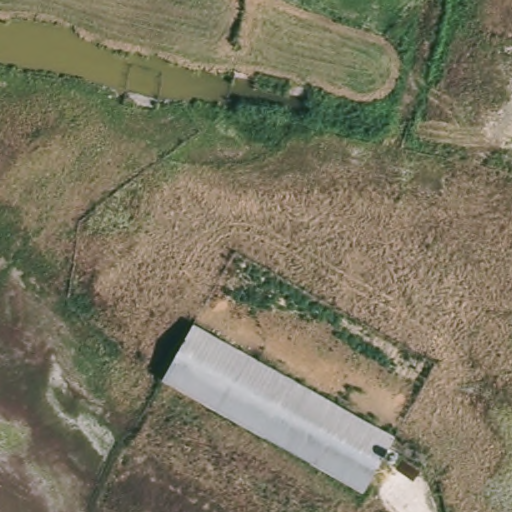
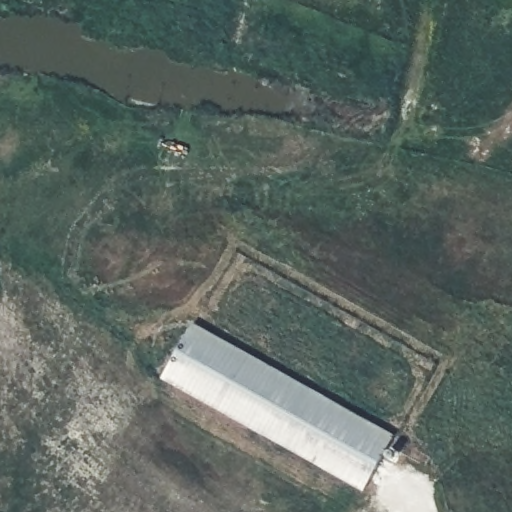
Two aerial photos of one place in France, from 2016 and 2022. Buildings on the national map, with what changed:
unchanged [(197,318),(393,444),(360,497),(164,369),(197,318)]

